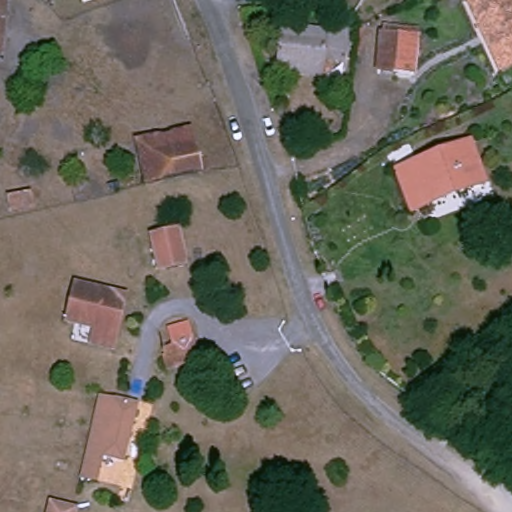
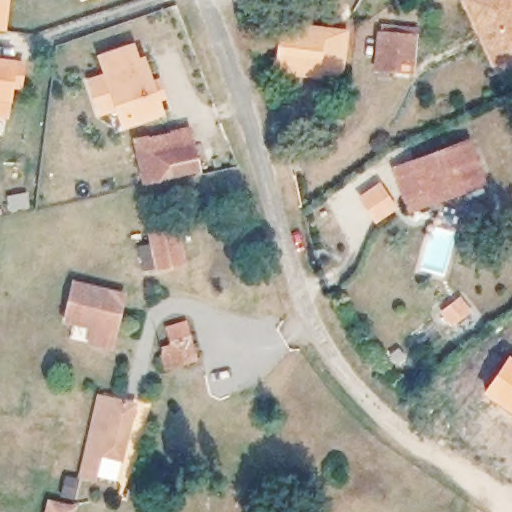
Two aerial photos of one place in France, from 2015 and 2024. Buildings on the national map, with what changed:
demolished [(0,0),(2,0),(0,16),(0,0)]
new [(0,30),(0,0),(10,0),(6,31),(0,30)]
unchanged [(464,2),(469,0),(512,0),(512,66),(497,73),(491,59),(464,2)]
unchanged [(279,14),(336,28),(330,77),(271,68),(279,14)]
unchanged [(419,34),(419,69),(384,69),(384,34),(419,34)]
new [(119,130),(98,55),(134,43),(139,56),(144,55),(164,115),(119,130)]
new [(21,89),(13,88),(9,119),(0,118),(0,57),(26,61),(21,89)]
unchanged [(131,153),(195,140),(199,169),(136,181),(131,153)]
unchanged [(478,189),(415,213),(407,188),(397,164),(464,146),(478,189)]
unchanged [(0,190),(33,184),(33,202),(0,208),(0,190)]
unchanged [(164,229),(169,228),(170,234),(176,262),(151,267),(145,233),(164,229)]
unchanged [(59,320),(64,283),(121,286),(120,299),(99,299),(94,325),(59,320)]
new [(459,295),(472,311),(450,327),(439,312),(459,295)]
unchanged [(99,299),(120,299),(113,352),(90,350),(94,325),(99,299)]
unchanged [(156,369),(149,343),(185,334),(192,361),(156,369)]
new [(508,353),(512,356),(512,414),(481,392),(508,353)]
unchanged [(110,461),(107,486),(78,480),(85,429),(92,404),(132,413),(129,434),(127,465),(110,461)]
unchanged [(70,512),(39,512),(43,497),(72,503),(70,512)]

